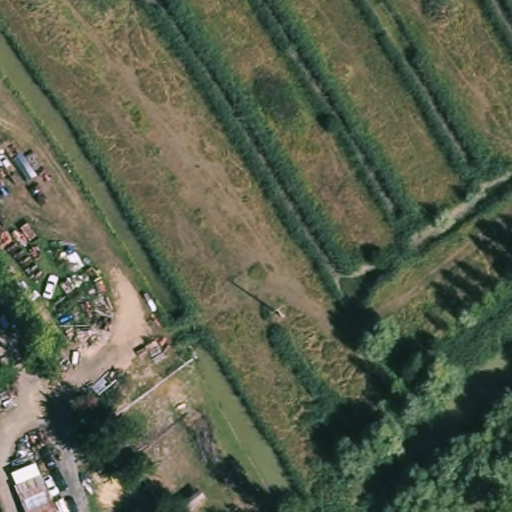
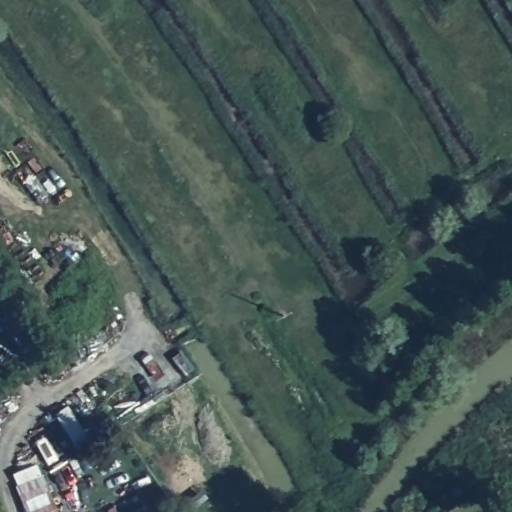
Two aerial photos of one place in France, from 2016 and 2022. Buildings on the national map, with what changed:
unchanged [(45,475),(58,512),(28,512),(18,486),(45,475)]
unchanged [(139,512),(131,512),(137,509),(139,512)]

